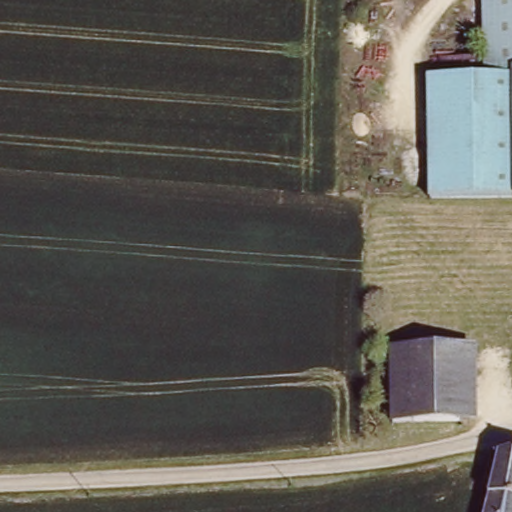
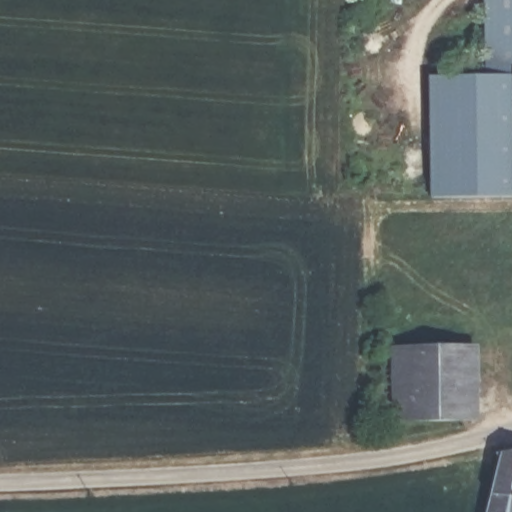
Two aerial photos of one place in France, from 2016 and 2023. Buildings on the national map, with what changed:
unchanged [(493,69),(493,0),(512,0),(512,70),(493,69)]
unchanged [(434,203),(436,69),(493,69),(512,70),(512,202),(434,203)]
unchanged [(462,346),(460,423),(393,422),(395,344),(462,346)]
unchanged [(500,458),(499,455),(512,453),(512,512),(486,512),(500,458)]

